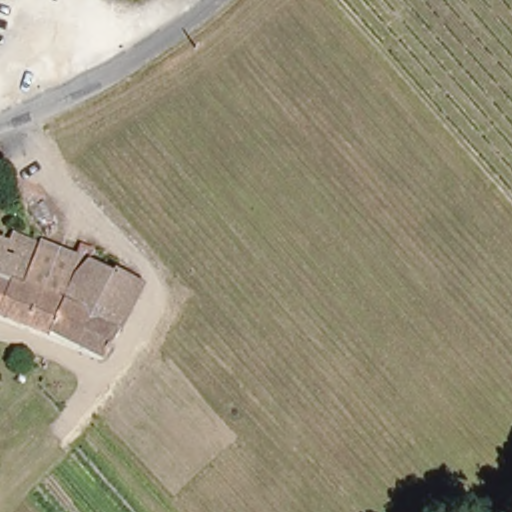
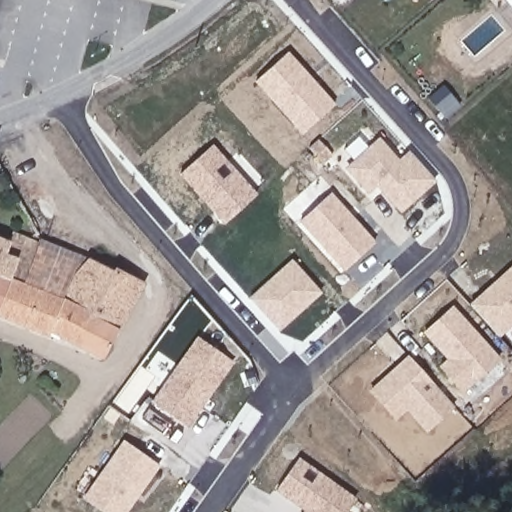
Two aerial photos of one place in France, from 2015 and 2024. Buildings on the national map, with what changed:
new [(499,2),(498,0),(501,0),(499,2)]
new [(288,51),(336,104),(303,135),(255,83),(288,51)]
new [(379,137),(399,159),(409,150),(437,182),(401,214),(377,187),(367,195),(343,170),(379,137)]
new [(258,194),(224,225),(179,174),(214,145),(258,194)]
new [(299,221),(332,192),(376,242),(344,272),(299,221)]
unchanged [(19,232),(36,240),(38,235),(41,236),(45,239),(44,242),(35,262),(23,257),(14,280),(0,274),(0,239),(14,245),(19,232)]
unchanged [(23,257),(35,262),(44,242),(54,246),(79,255),(102,262),(144,285),(140,291),(108,358),(55,332),(53,337),(0,315),(14,280),(23,257)]
new [(279,332),(248,297),(290,260),(321,292),(279,332)]
new [(512,265),(512,326),(500,337),(469,305),(512,265)]
unchanged [(0,315),(0,274),(14,280),(0,315)]
new [(453,306),(501,360),(464,393),(439,365),(446,358),(423,332),(453,306)]
new [(188,428),(150,402),(197,337),(234,362),(188,428)]
new [(455,407),(427,432),(407,411),(396,421),(368,391),(407,355),(455,407)]
new [(102,512),(83,497),(122,440),(159,466),(127,512),(102,512)]
new [(357,498),(347,512),(302,512),(303,511),(275,491),(298,457),(357,498)]

